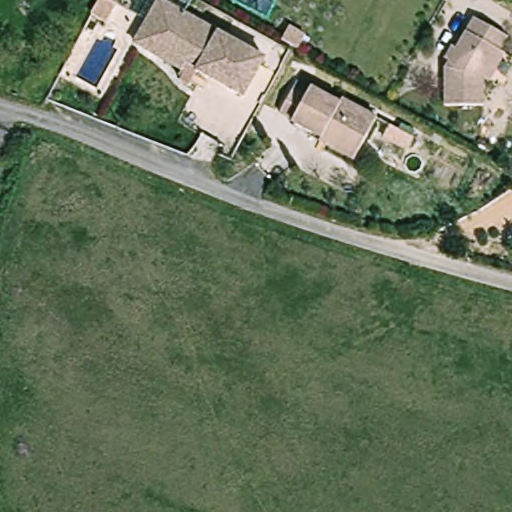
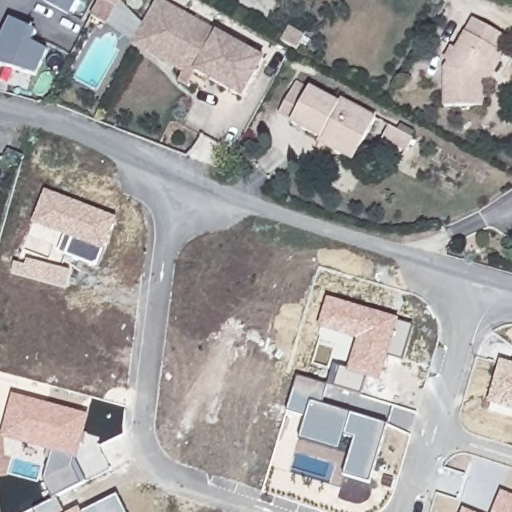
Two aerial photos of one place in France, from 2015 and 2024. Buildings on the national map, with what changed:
new [(63,14),(39,0),(40,0),(71,0),(63,14)]
new [(95,0),(116,0),(103,22),(88,13),(95,0)]
unchanged [(259,56),(238,94),(183,64),(180,70),(164,62),(130,43),(141,24),(154,0),(156,0),(259,56)]
new [(33,31),(27,42),(43,51),(30,74),(0,65),(0,33),(1,31),(8,18),(33,31)]
unchanged [(489,82),(483,79),(480,108),(442,105),(444,67),(476,18),(508,39),(500,52),(506,55),(489,82)]
unchanged [(291,123),(310,87),(339,103),(341,98),(376,116),(356,152),(352,161),(318,143),(321,139),(291,123)]
unchanged [(388,124),(412,136),(405,150),(381,138),(388,124)]
new [(58,253),(64,236),(31,223),(46,190),(118,219),(98,269),(58,253)]
new [(398,322),(412,326),(401,360),(388,354),(379,383),(366,379),(361,396),(329,386),(323,406),(386,425),(370,482),(344,476),(356,438),(344,434),(339,451),(299,440),(307,417),(287,412),(301,376),(328,384),(334,364),(348,369),(356,340),(318,328),(326,296),(400,318),(398,322)]
new [(488,402),(501,360),(512,363),(512,410),(488,402)]
new [(53,500),(44,480),(51,452),(1,438),(13,395),(88,416),(78,458),(77,463),(86,483),(58,497),(64,512),(34,512),(33,510),(53,500)]
new [(512,495),(512,512),(492,512),(502,491),(512,495)]
new [(87,512),(117,495),(126,512),(87,512)]
new [(81,512),(73,512),(79,508),(81,512)]
new [(472,512),(462,512),(464,508),(472,512)]

